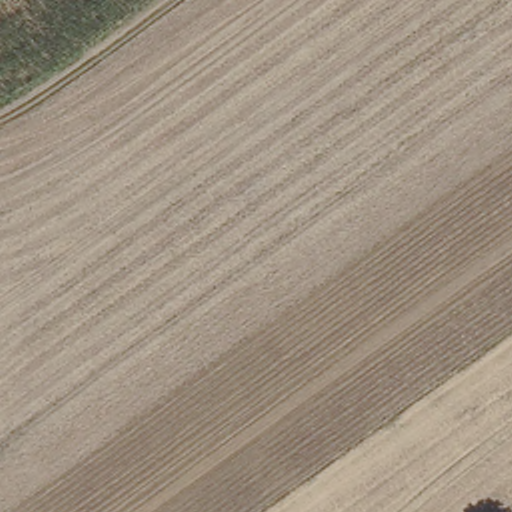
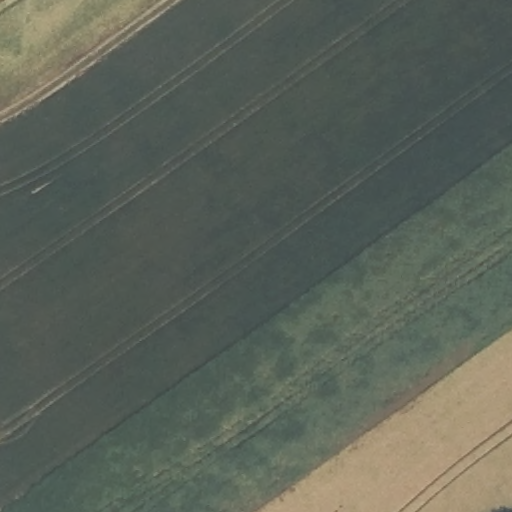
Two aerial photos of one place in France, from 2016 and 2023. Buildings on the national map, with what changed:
[]

